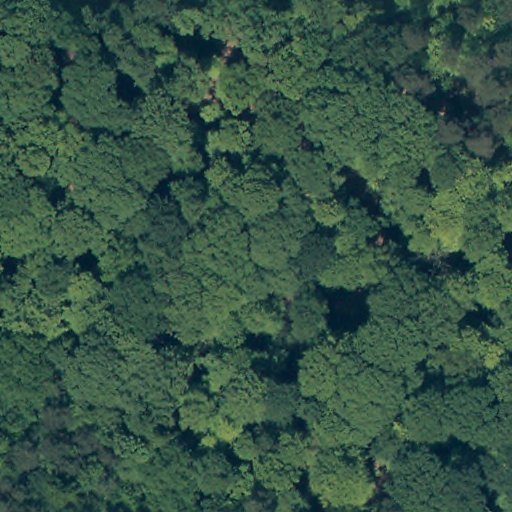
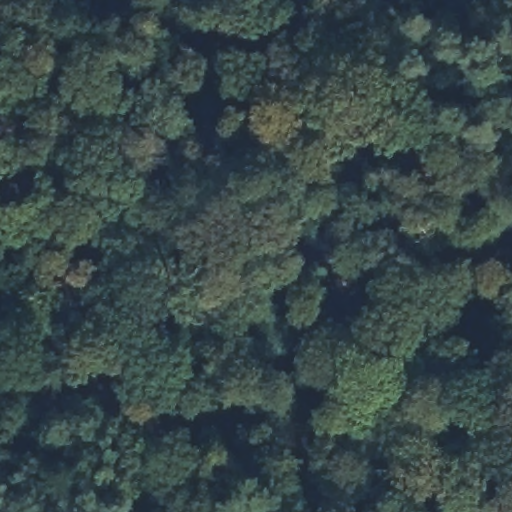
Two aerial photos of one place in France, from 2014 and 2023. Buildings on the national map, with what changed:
[]

